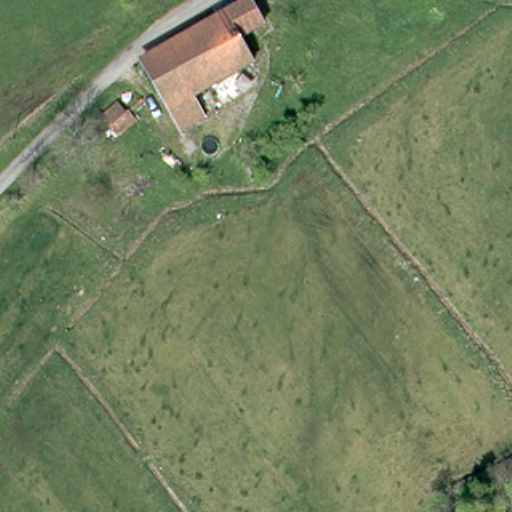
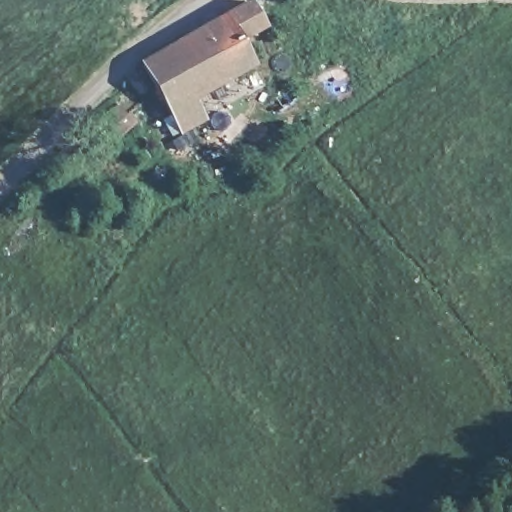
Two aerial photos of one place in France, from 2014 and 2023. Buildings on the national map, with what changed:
unchanged [(240,6),(253,31),(245,36),(236,42),(248,61),(227,74),(240,93),(179,131),(136,70),(240,6)]

